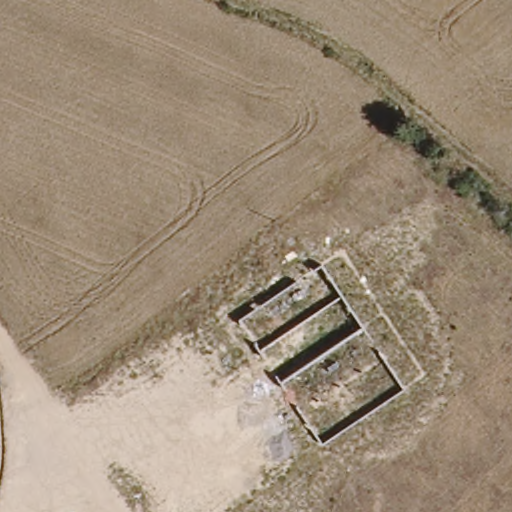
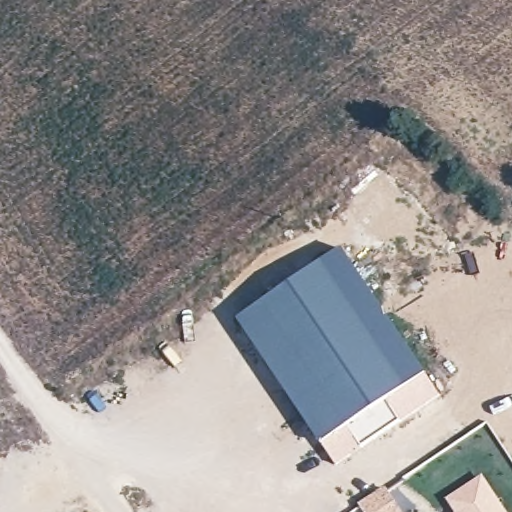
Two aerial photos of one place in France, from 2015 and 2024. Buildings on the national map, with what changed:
new [(426,371),(442,396),(336,468),(322,444),(237,319),(341,249),(426,371)]
new [(450,500),(482,478),(505,512),(459,512),(450,500)]

